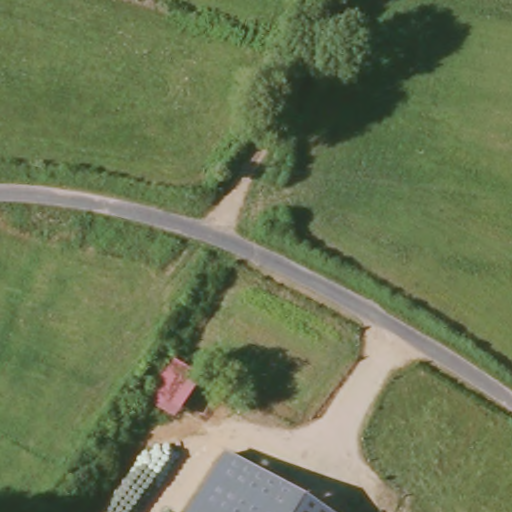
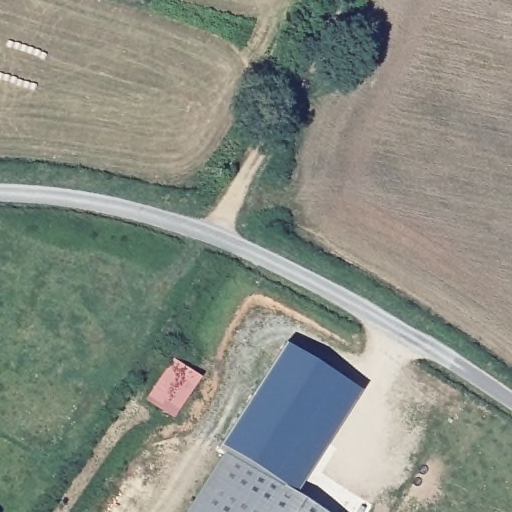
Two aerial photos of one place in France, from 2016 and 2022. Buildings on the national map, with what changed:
new [(224,452),(219,449),(285,344),(360,393),(295,496),(224,452)]
unchanged [(170,413),(145,399),(170,359),(193,373),(170,413)]
unchanged [(321,512),(186,512),(224,452),(321,512)]

